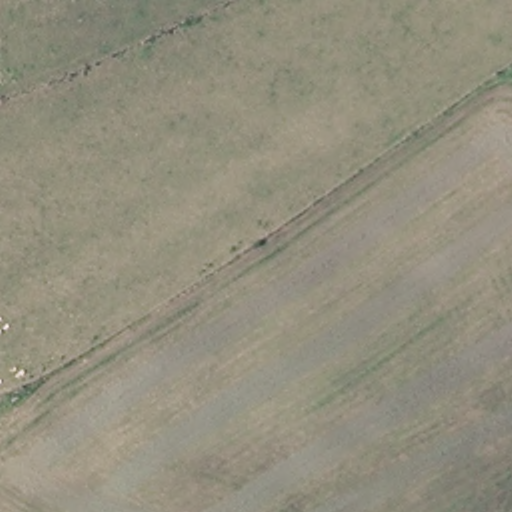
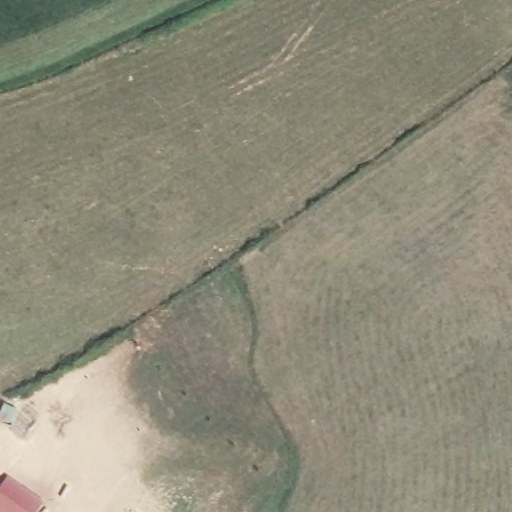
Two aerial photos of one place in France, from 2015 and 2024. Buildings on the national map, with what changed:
new [(36,512),(0,512),(0,486),(8,475),(44,500),(36,512)]

